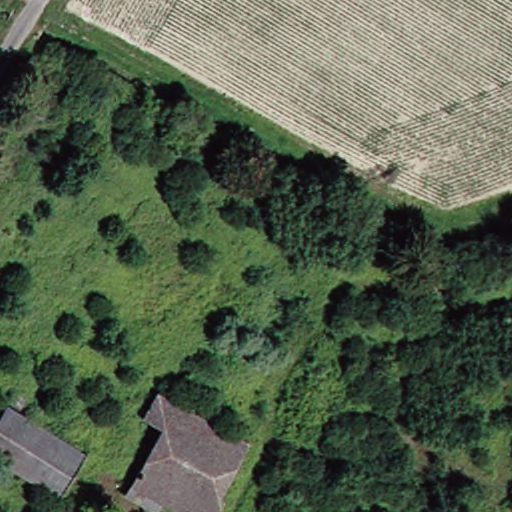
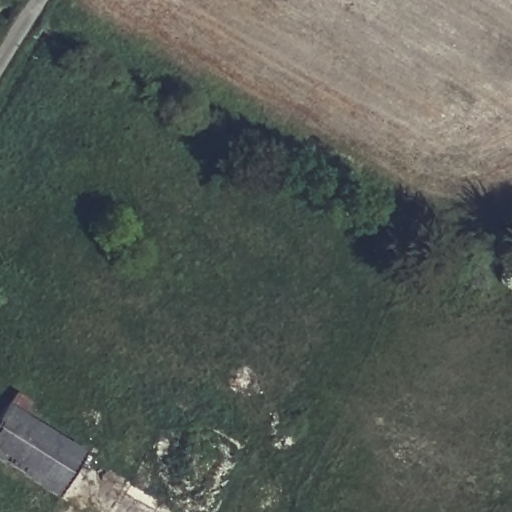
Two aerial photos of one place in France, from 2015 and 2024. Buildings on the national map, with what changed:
demolished [(145,411),(158,386),(248,436),(220,488),(225,492),(214,512),(189,512),(190,510),(163,495),(134,478),(163,421),(145,411)]
unchanged [(74,418),(96,430),(61,490),(0,453),(0,415),(7,401),(10,402),(18,389),(31,396),(23,410),(64,433),(74,418)]
unchanged [(157,504),(128,488),(134,478),(163,495),(157,504)]

